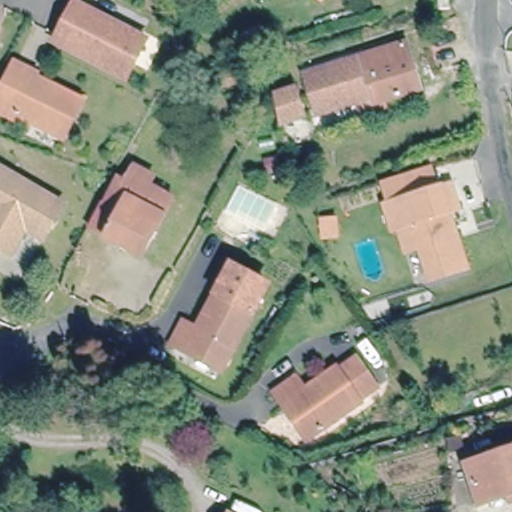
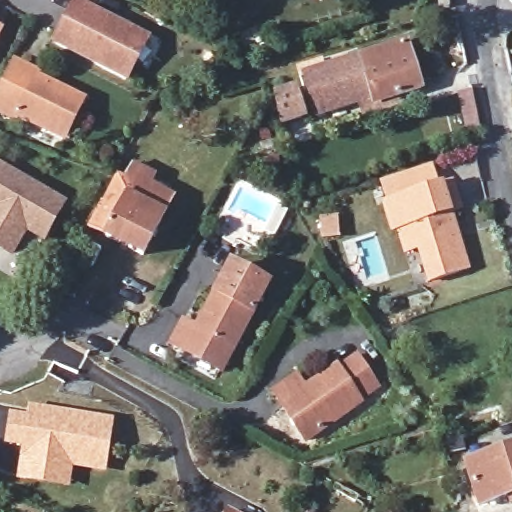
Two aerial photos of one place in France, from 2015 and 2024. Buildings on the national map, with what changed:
unchanged [(147,34),(127,74),(56,39),(76,0),(79,0),(147,34)]
unchanged [(432,0),(449,0),(447,8),(431,6),(432,0)]
unchanged [(362,107),(358,94),(315,106),(305,65),(406,34),(421,82),(393,91),(395,98),(362,107)]
unchanged [(35,75),(82,98),(64,135),(17,111),(15,116),(0,108),(0,96),(17,61),(37,71),(35,75)]
unchanged [(293,84),(300,112),(280,118),(272,89),(293,84)]
unchanged [(10,247),(0,240),(0,160),(63,198),(49,221),(39,238),(22,228),(10,247)]
unchanged [(157,172),(152,182),(175,194),(145,255),(92,228),(117,176),(123,179),(132,161),(136,162),(154,171),(157,172)]
unchanged [(403,227),(398,229),(390,203),(457,183),(465,209),(455,212),(460,226),(462,237),(471,268),(433,279),(423,247),(410,251),(403,227)]
unchanged [(178,316),(193,324),(226,261),(264,282),(219,365),(216,364),(218,361),(187,344),(185,348),(166,337),(178,316)]
unchanged [(341,369),(360,357),(380,387),(360,399),(362,402),(308,438),(307,436),(308,435),(290,405),(287,406),(285,403),(277,391),(298,377),(306,389),(340,367),(341,369)]
new [(8,413),(26,416),(27,405),(114,420),(105,473),(73,468),(70,487),(15,479),(20,449),(2,446),(8,413)]
unchanged [(512,446),(512,499),(511,499),(508,491),(479,501),(466,461),(512,446)]

